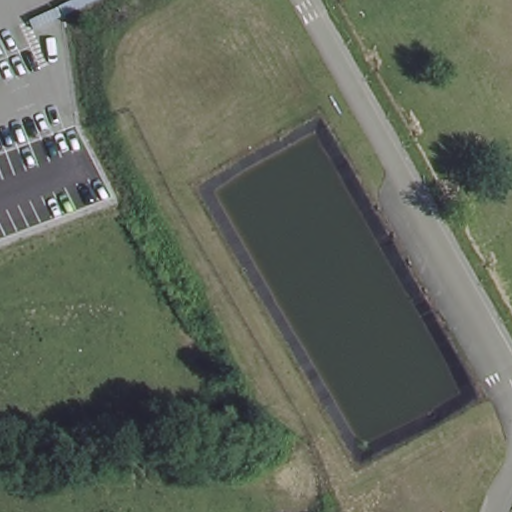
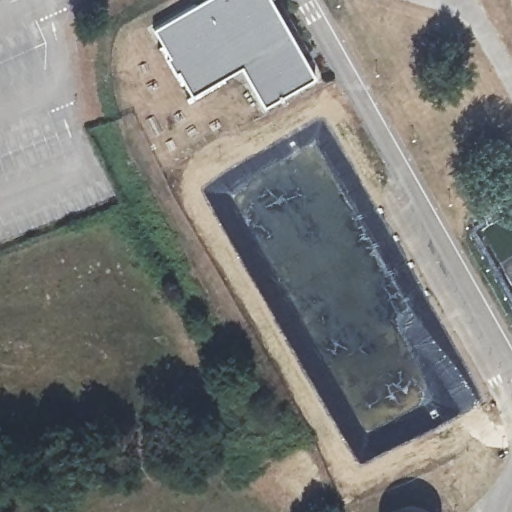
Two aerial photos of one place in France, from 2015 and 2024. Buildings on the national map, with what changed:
new [(265,0),(309,80),(257,109),(235,69),(185,97),(172,73),(170,75),(161,58),(163,57),(148,29),(200,0),(265,0)]

